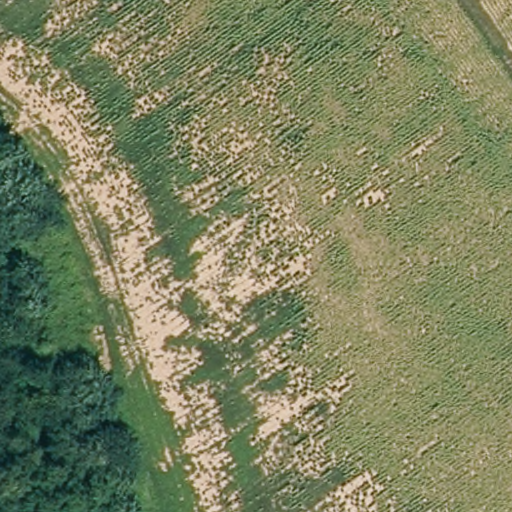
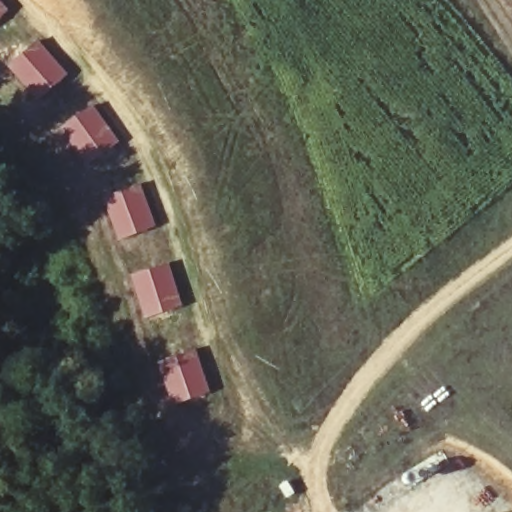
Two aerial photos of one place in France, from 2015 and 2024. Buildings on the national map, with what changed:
new [(0,19),(0,0),(5,0),(13,8),(0,19)]
new [(11,66),(41,40),(71,74),(40,100),(11,66)]
new [(67,131),(101,110),(125,150),(90,170),(67,131)]
new [(105,200),(141,185),(158,228),(121,242),(105,200)]
new [(134,281),(171,268),(186,310),(149,324),(134,281)]
new [(165,376),(160,368),(198,357),(212,401),(173,412),(165,376)]

